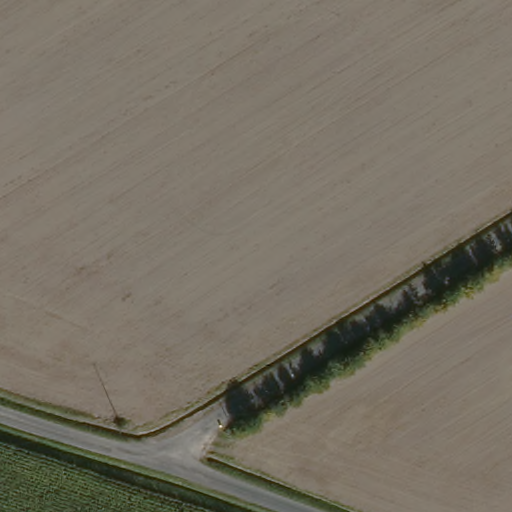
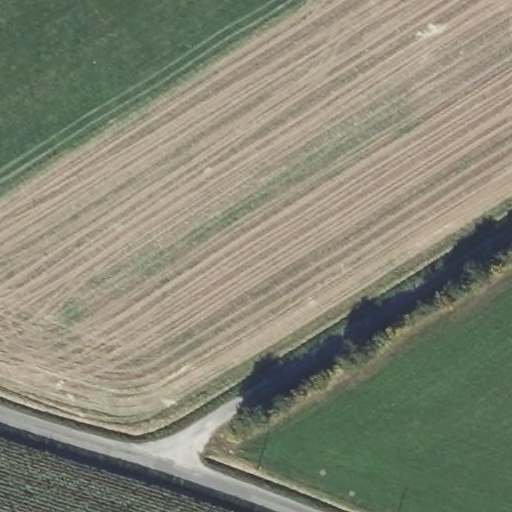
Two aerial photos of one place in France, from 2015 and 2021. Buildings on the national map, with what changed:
[]

